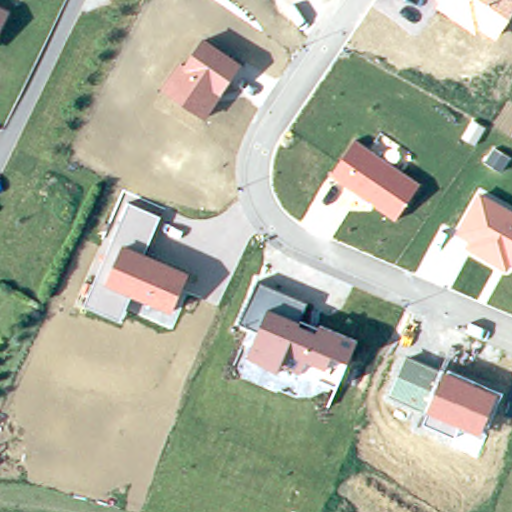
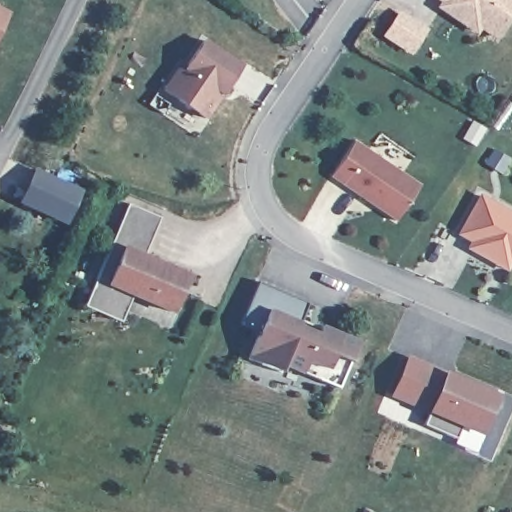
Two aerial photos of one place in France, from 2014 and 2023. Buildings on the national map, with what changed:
unchanged [(512,16),(494,42),(477,31),(475,34),(437,7),(440,2),(437,0),(512,0),(512,16)]
new [(398,15),(425,31),(410,53),(385,36),(398,15)]
unchanged [(240,66),(204,117),(160,86),(178,61),(185,65),(203,39),(240,66)]
unchanged [(419,184),(397,220),(332,176),(355,140),(419,184)]
new [(35,171),(81,192),(67,225),(20,204),(35,171)]
unchanged [(512,268),(510,267),(507,271),(467,250),(470,246),(455,237),(478,194),(512,213),(512,268)]
unchanged [(162,216),(146,253),(188,274),(173,313),(132,296),(121,323),(82,307),(127,202),(162,216)]
unchanged [(308,304),(301,324),(315,330),(317,325),(357,340),(338,388),(281,366),(278,372),(246,358),(258,331),(240,321),(258,281),(308,304)]
unchanged [(442,370),(445,365),(503,391),(483,438),(458,428),(453,441),(417,424),(422,409),(390,395),(408,356),(442,370)]

